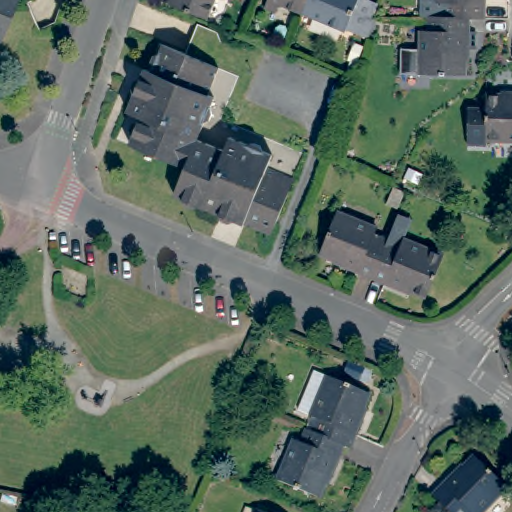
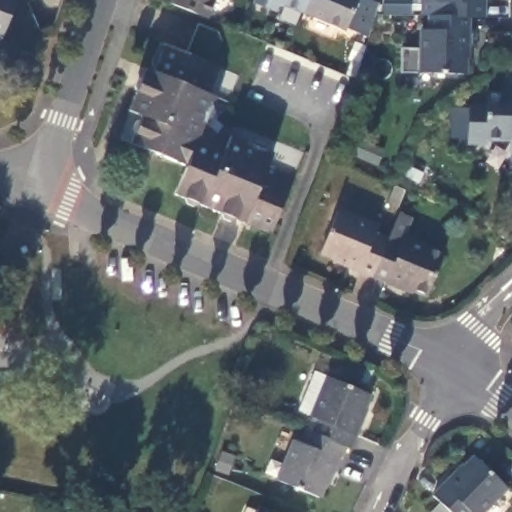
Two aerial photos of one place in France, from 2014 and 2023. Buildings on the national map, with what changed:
unchanged [(207,17),(170,1),(170,0),(214,0),(207,17)]
unchanged [(302,14),(284,6),(276,13),(265,8),(267,0),(307,0),(302,14)]
unchanged [(346,30),(345,32),(302,14),(307,0),(363,0),(379,7),(376,17),(369,40),(346,30)]
unchanged [(482,14),(469,14),(467,14),(444,14),(429,13),(421,13),(421,0),(482,0),(482,14)]
unchanged [(444,14),(467,14),(466,46),(463,45),(463,71),(419,70),(399,69),(399,44),(420,44),(420,28),(429,28),(429,13),(444,14)]
unchanged [(210,67),(219,70),(207,96),(213,99),(197,140),(225,150),(230,138),(273,155),(267,168),(294,179),(278,216),(274,227),(271,236),(174,195),(185,168),(158,156),(130,144),(140,119),(126,114),(144,71),(148,71),(151,74),(153,68),(150,66),(155,55),(159,57),(162,46),(186,56),(210,67)]
unchanged [(487,139),(489,95),(512,95),(512,140),(487,139)]
unchanged [(372,275),(344,264),(345,261),(321,251),(338,210),(377,225),(375,232),(388,237),(372,275)]
unchanged [(397,214),(398,211),(412,217),(408,226),(404,237),(443,253),(427,294),(403,284),(401,287),(372,275),(388,237),(394,221),(397,214)]
unchanged [(313,435),(318,423),(313,420),(301,416),(319,375),(331,380),(370,397),(361,422),(364,423),(353,451),(345,448),(313,435)]
unchanged [(313,435),(345,448),(333,477),(331,477),(319,502),(278,483),(295,442),(302,445),(307,433),(313,435)]
unchanged [(431,502),(449,483),(452,485),(473,463),(504,494),(486,512),(434,512),(438,508),(431,502)]

